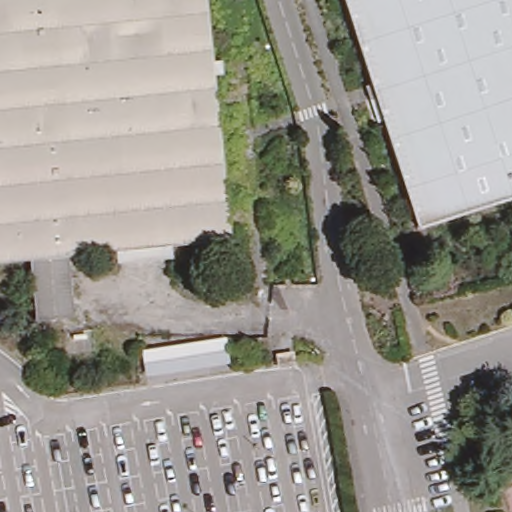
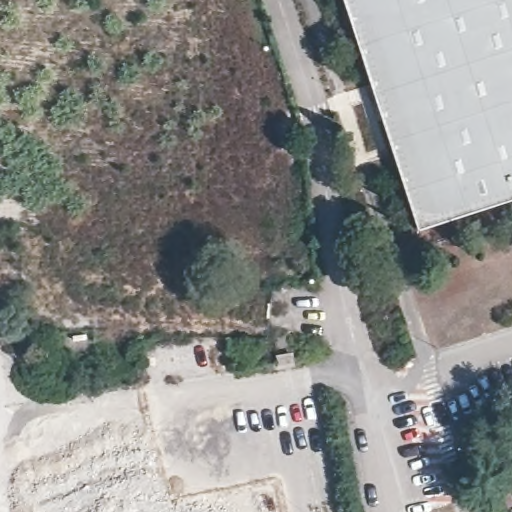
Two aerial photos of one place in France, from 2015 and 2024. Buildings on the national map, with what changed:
demolished [(73,256),(36,260),(0,264),(0,0),(212,0),(237,239),(175,245),(121,251),(73,256)]
unchanged [(431,222),(425,224),(402,156),(352,0),(512,0),(512,196),(497,201),(431,222)]
unchanged [(223,334),(226,361),(150,371),(146,346),(223,334)]

